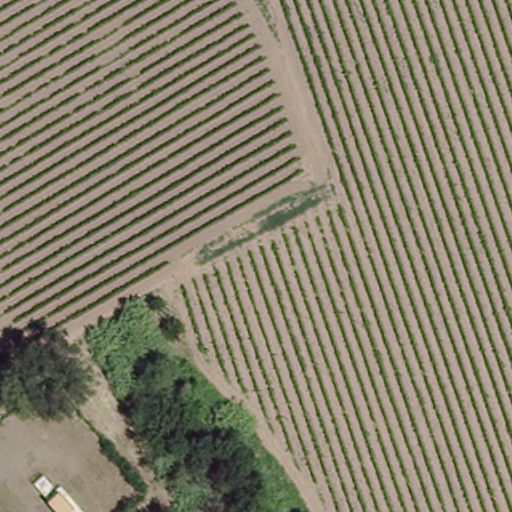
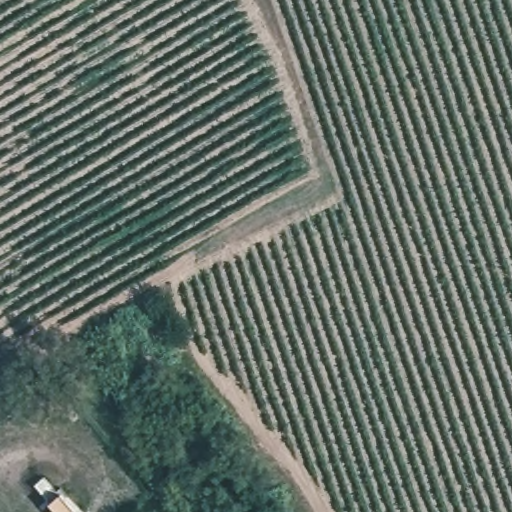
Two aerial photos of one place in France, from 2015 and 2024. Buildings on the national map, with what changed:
unchanged [(80,512),(52,512),(34,487),(57,472),(83,510),(80,512)]

